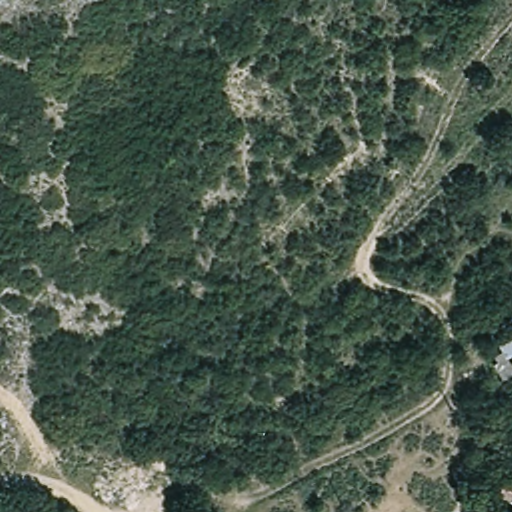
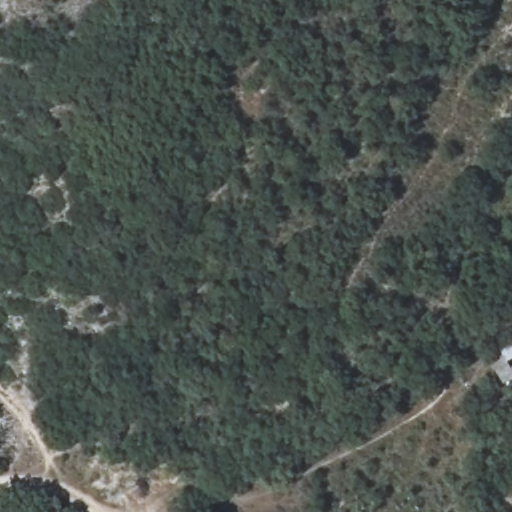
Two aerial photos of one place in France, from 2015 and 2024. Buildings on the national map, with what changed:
unchanged [(488,354),(512,338),(512,378),(504,382),(488,354)]
unchanged [(504,478),(512,480),(512,504),(499,501),(504,478)]

